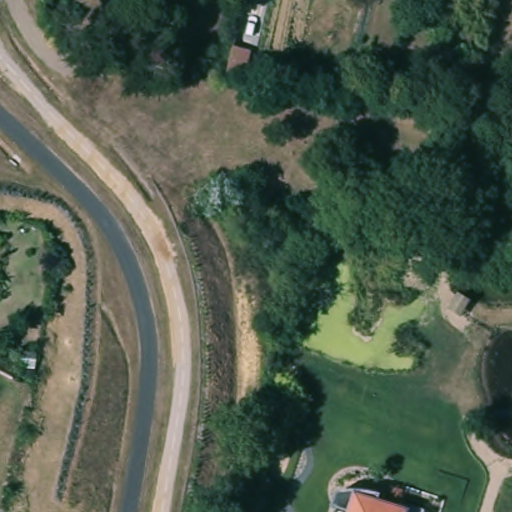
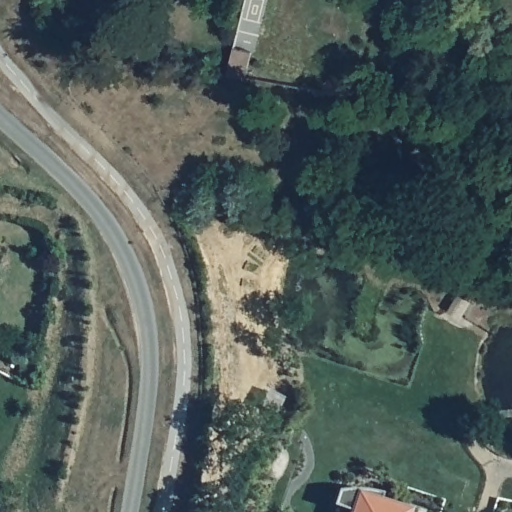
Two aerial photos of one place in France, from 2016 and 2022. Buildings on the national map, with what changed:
unchanged [(380,502),(410,512),(340,512),(330,508),(335,492),(350,491),(380,495),(380,502)]

